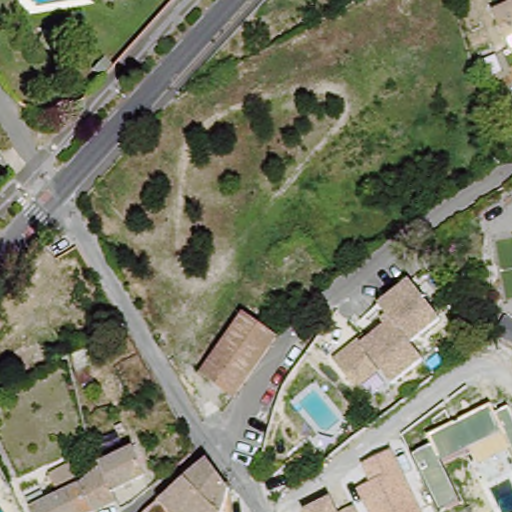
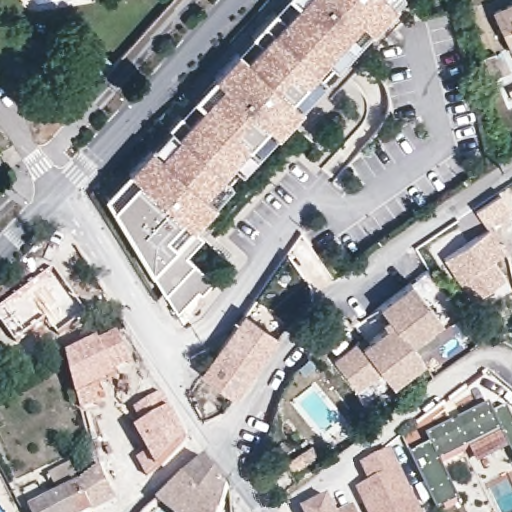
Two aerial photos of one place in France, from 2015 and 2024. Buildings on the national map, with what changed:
new [(394,4),(371,30),(338,68),(333,65),(322,77),(325,80),(316,89),(299,108),(301,109),(242,173),(237,169),(227,181),(232,185),(215,205),(193,229),(201,236),(184,255),(193,262),(213,280),(202,293),(197,290),(178,312),(165,293),(151,270),(113,209),(105,199),(129,169),(151,145),(181,115),(214,75),(237,49),(265,23),(283,0),(398,0),(394,4)]
unchanged [(499,6),(512,0),(512,40),(499,6)]
new [(500,193),(511,210),(488,228),(475,210),(500,193)]
new [(491,226),(506,249),(495,259),(506,277),(474,299),(443,258),(491,226)]
unchanged [(359,338),(363,343),(386,325),(382,320),(389,314),(381,304),(412,280),(440,319),(413,342),(422,359),(392,383),(380,370),(354,388),(334,358),(359,338)]
unchanged [(222,341),(244,310),(278,335),(255,366),(222,341)]
new [(119,331),(134,363),(117,370),(120,378),(102,384),(107,399),(81,408),(66,354),(119,331)]
unchanged [(201,371),(222,341),(255,366),(234,395),(201,371)]
unchanged [(496,412),(509,406),(512,413),(512,451),(511,449),(476,465),(469,450),(443,462),(461,503),(442,512),(438,512),(412,453),(431,445),(427,435),(493,405),(496,412)]
unchanged [(87,493),(81,480),(95,472),(102,468),(99,462),(134,446),(147,475),(114,491),(117,499),(95,511),(87,493)]
unchanged [(368,512),(357,488),(370,481),(361,463),(394,450),(422,512),(368,512)]
unchanged [(223,512),(177,512),(161,498),(210,458),(231,489),(230,491),(223,512)]
unchanged [(34,512),(31,506),(59,491),(49,470),(71,460),(81,480),(87,493),(95,511),(93,512),(34,512)]
unchanged [(331,496),(338,511),(355,503),(359,512),(301,512),(300,510),(331,496)]

